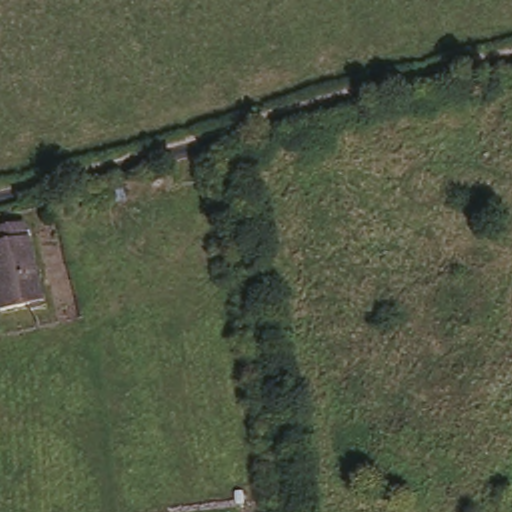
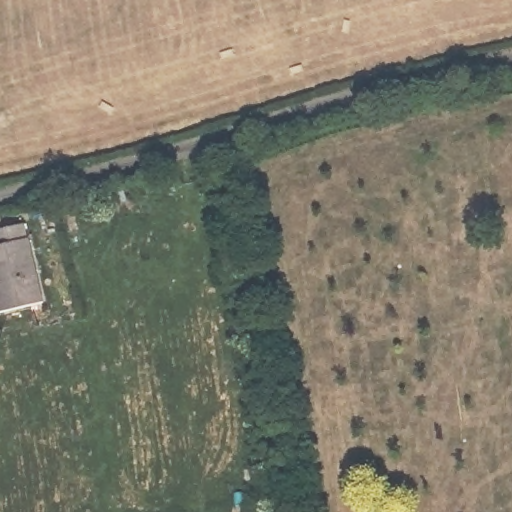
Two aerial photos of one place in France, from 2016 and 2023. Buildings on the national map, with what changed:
unchanged [(0,311),(0,226),(27,221),(39,306),(0,311)]

